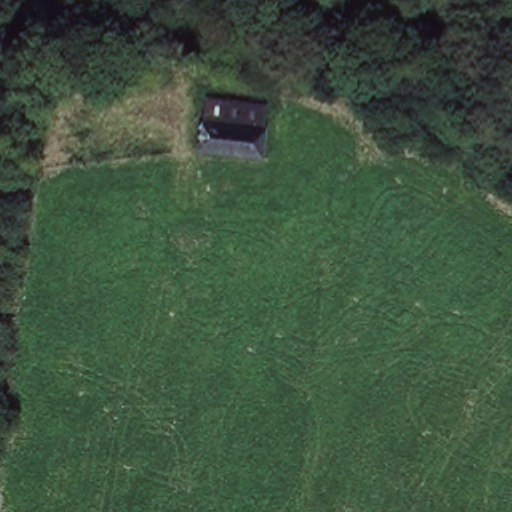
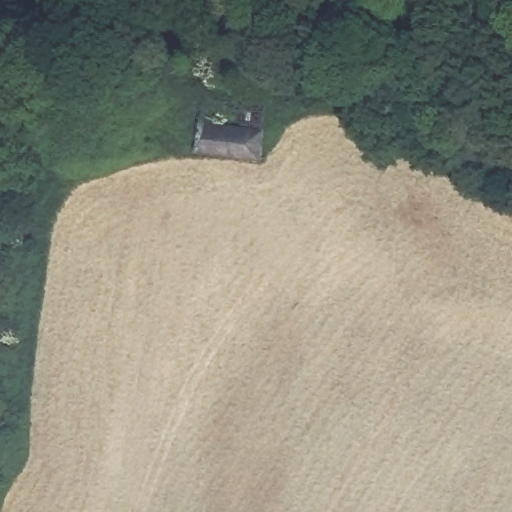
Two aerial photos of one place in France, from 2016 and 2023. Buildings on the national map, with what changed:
unchanged [(205,95),(270,100),(267,157),(201,145),(205,95)]

